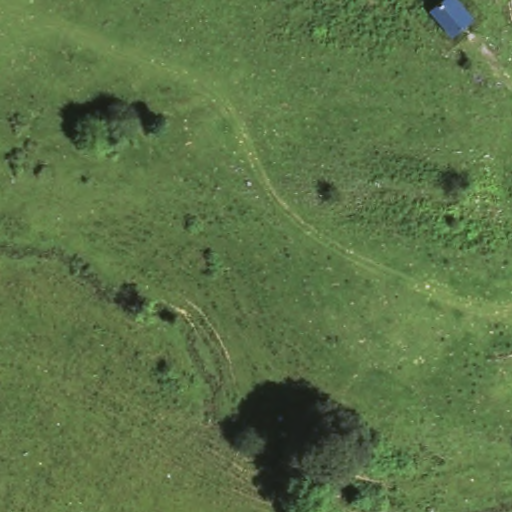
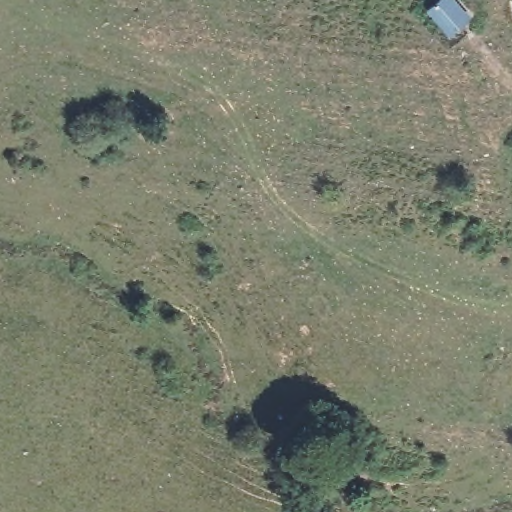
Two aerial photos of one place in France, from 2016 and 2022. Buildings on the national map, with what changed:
unchanged [(427,6),(435,0),(465,0),(476,15),(452,38),(441,25),(427,6)]

